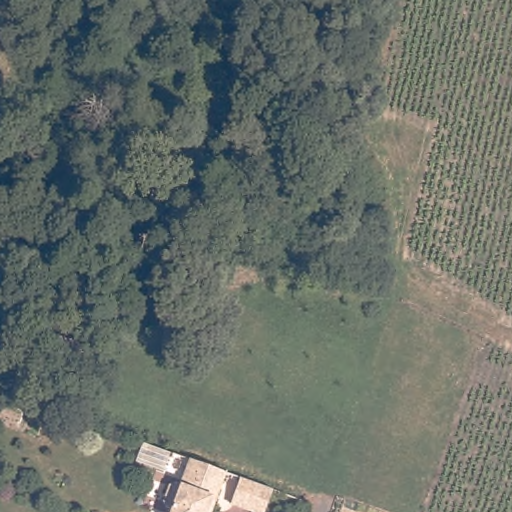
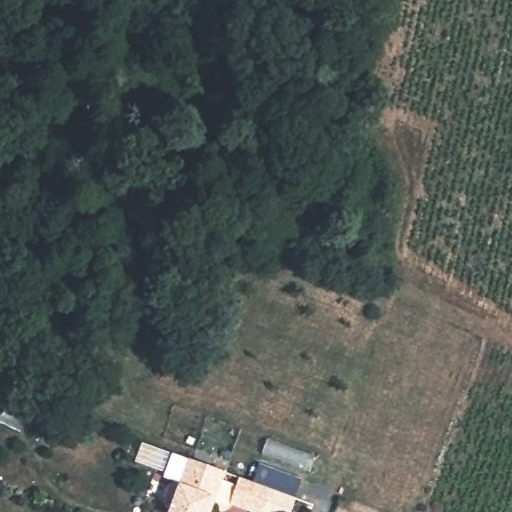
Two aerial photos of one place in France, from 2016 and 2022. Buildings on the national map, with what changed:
unchanged [(164,496),(173,489),(178,490),(188,463),(222,474),(210,512),(164,512),(161,506),(164,498),(164,496)]
unchanged [(271,497),(265,512),(230,512),(239,485),(271,497)]

